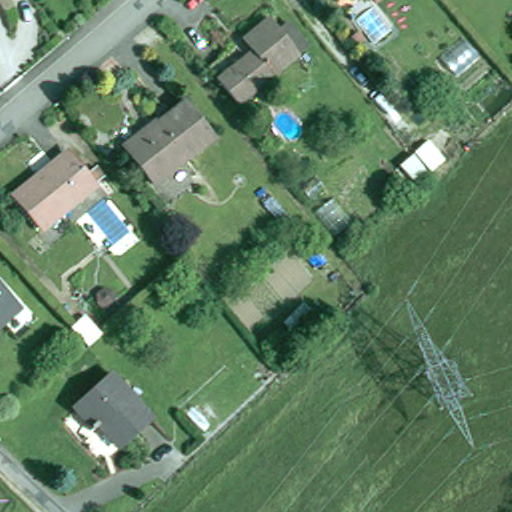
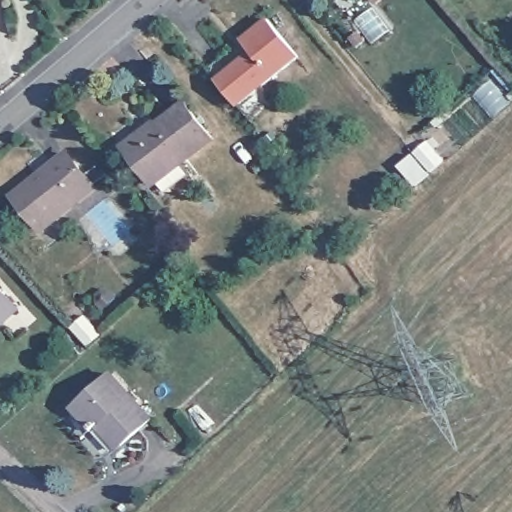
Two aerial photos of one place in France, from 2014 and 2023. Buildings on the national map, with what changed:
unchanged [(248,103),(227,78),(260,52),(249,39),(275,19),(307,54),(248,103)]
unchanged [(160,185),(127,148),(147,130),(150,133),(187,103),(217,136),(160,185)]
unchanged [(47,229),(15,194),(67,151),(97,187),(47,229)]
unchanged [(0,326),(0,284),(21,308),(0,326)]
unchanged [(73,326),(88,314),(105,332),(90,345),(73,326)]
unchanged [(130,445),(107,423),(98,430),(77,404),(117,374),(158,419),(130,445)]

